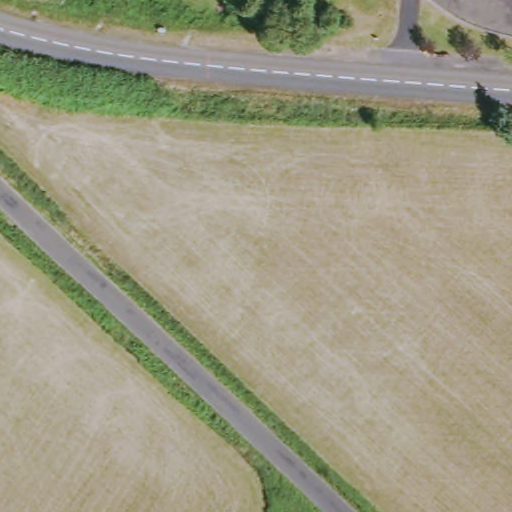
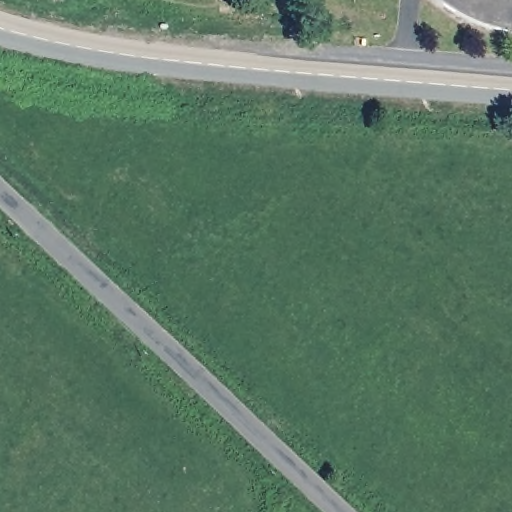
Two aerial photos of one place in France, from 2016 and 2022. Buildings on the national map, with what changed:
unchanged [(447,0),(512,0),(512,29),(475,17),(447,0)]

